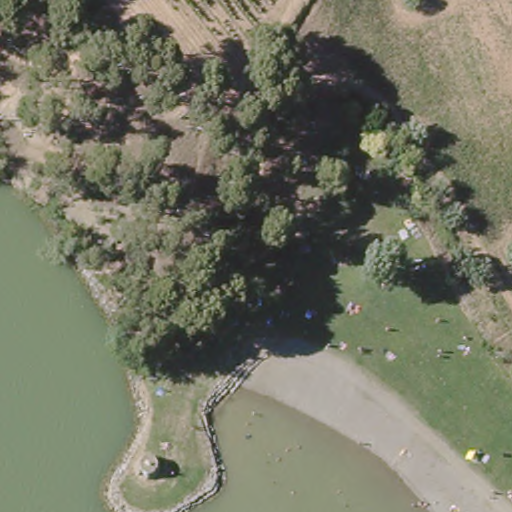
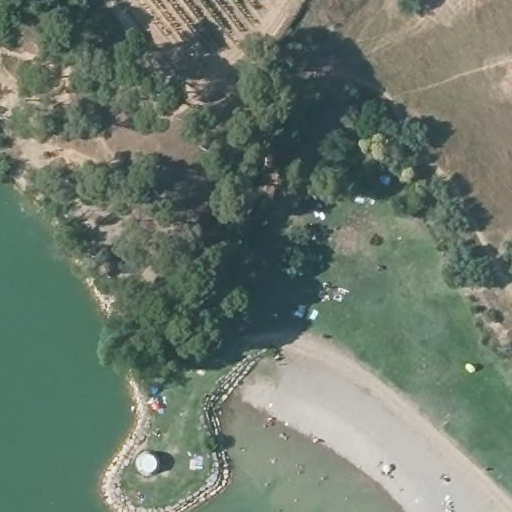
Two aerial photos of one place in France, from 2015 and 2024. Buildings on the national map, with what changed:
unchanged [(157,463),(155,466),(153,467),(150,468),(146,467),(143,466),(141,463),(140,460),(141,456),(143,453),(146,452),(150,451),(153,452),(155,453),(157,456),(158,460),(157,463)]

